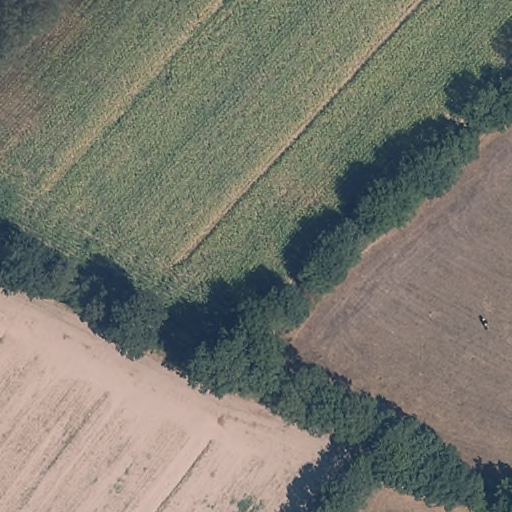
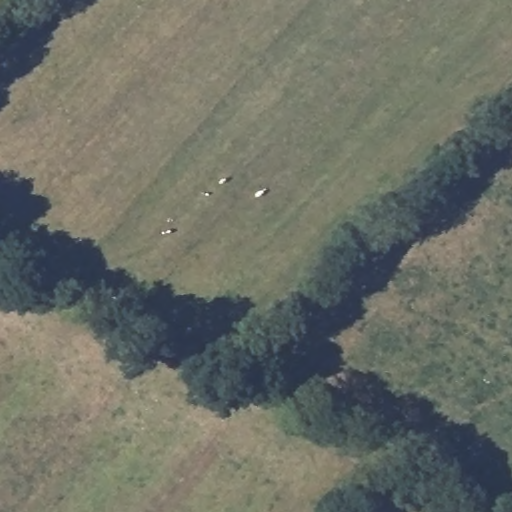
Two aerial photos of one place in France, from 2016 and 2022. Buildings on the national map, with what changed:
[]

